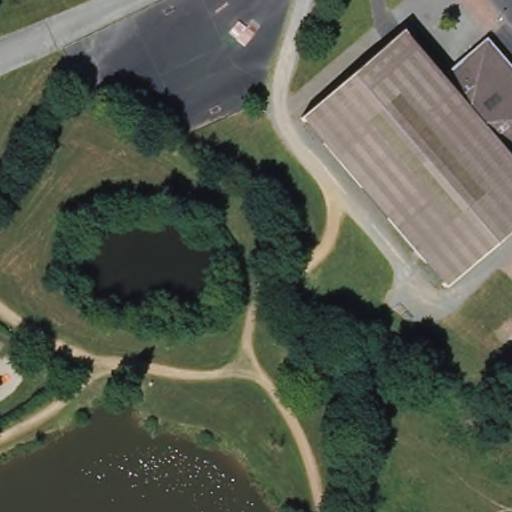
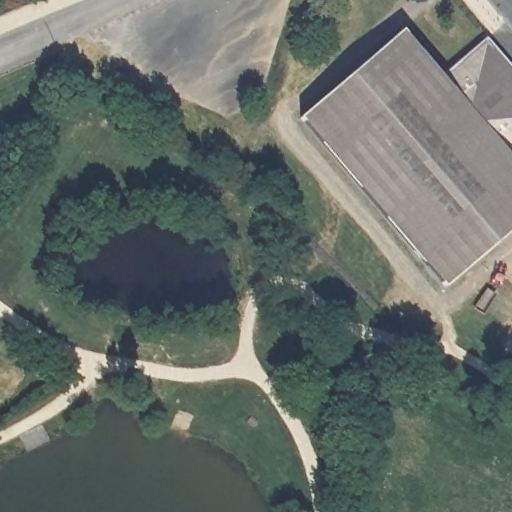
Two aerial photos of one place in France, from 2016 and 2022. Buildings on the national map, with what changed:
unchanged [(439,77),(485,39),(512,68),(512,155),(512,156),(512,232),(453,289),(302,125),(401,36),(439,77)]

